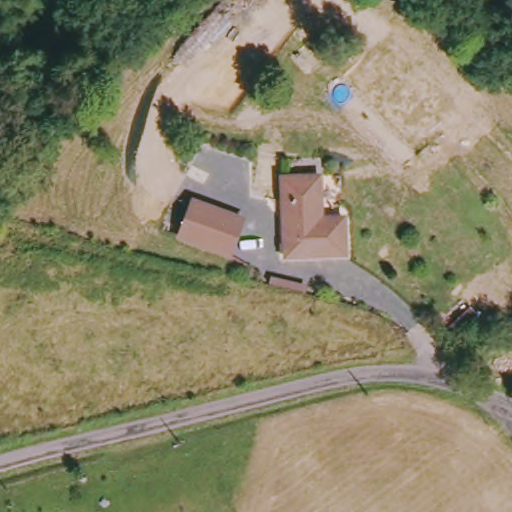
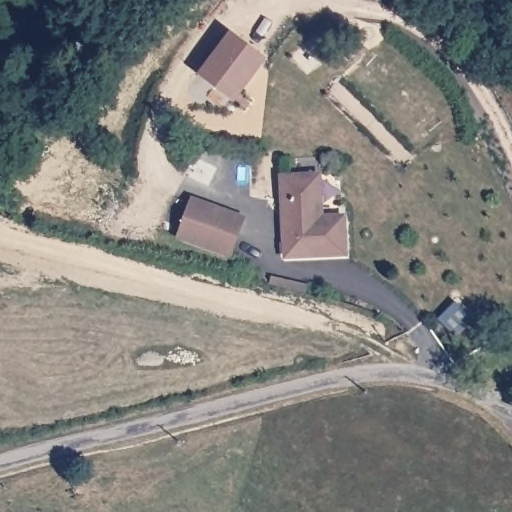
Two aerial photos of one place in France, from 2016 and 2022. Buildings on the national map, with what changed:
new [(235,100),(199,74),(231,31),(266,58),(235,100)]
unchanged [(329,216),(351,215),(354,258),(289,260),(287,174),(327,172),(329,216)]
unchanged [(243,218),(226,262),(173,242),(188,198),(243,218)]

